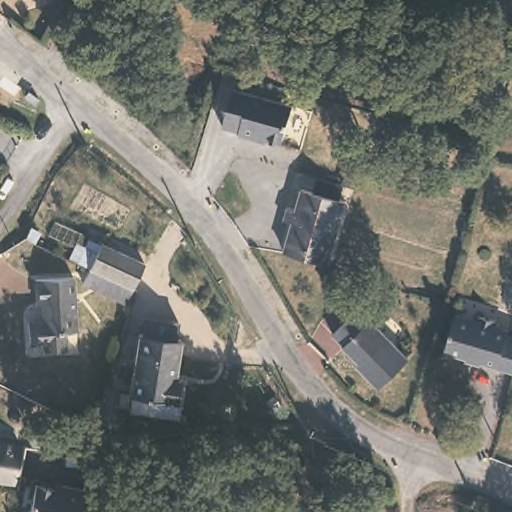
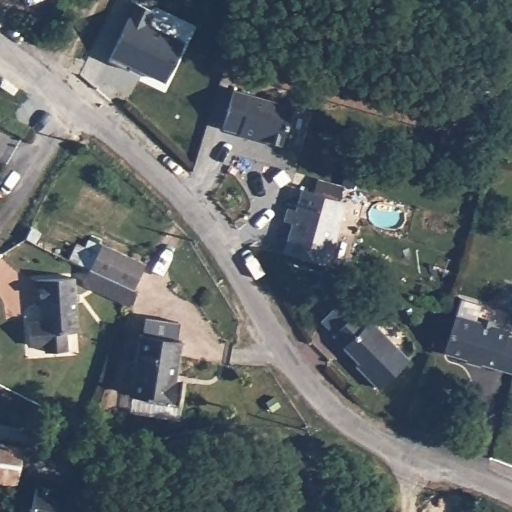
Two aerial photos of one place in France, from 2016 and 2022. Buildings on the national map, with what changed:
new [(167,82),(130,65),(127,70),(110,62),(135,4),(154,13),(148,25),(185,42),(167,82)]
unchanged [(290,105),(280,143),(254,135),(253,138),(236,133),(237,130),(220,125),(231,88),(290,105)]
unchanged [(327,264),(284,250),(291,224),(282,222),(287,207),(296,209),(301,190),(345,203),(327,264)]
unchanged [(131,286),(97,277),(85,273),(89,258),(87,258),(94,232),(125,240),(140,244),(132,270),(135,272),(131,286)]
unchanged [(79,332),(69,333),(70,352),(50,354),(49,348),(34,349),(30,326),(45,324),(44,307),(37,308),(35,283),(71,278),(79,332)]
unchanged [(352,309),(365,320),(367,317),(408,354),(380,384),(363,369),(366,367),(342,344),(343,344),(331,333),(352,309)]
unchanged [(490,314),(488,322),(501,327),(491,361),(459,352),(460,349),(438,342),(448,309),(470,317),(472,309),(490,314)]
unchanged [(174,385),(180,386),(176,408),(129,399),(137,338),(140,338),(143,321),(179,327),(176,344),(180,344),(174,385)]
unchanged [(20,448),(10,482),(0,479),(0,442),(19,448),(20,448)]
unchanged [(35,483),(62,489),(63,484),(85,489),(80,512),(28,512),(35,483)]

